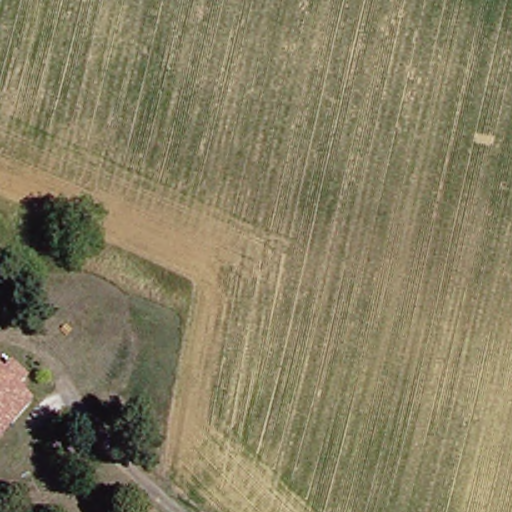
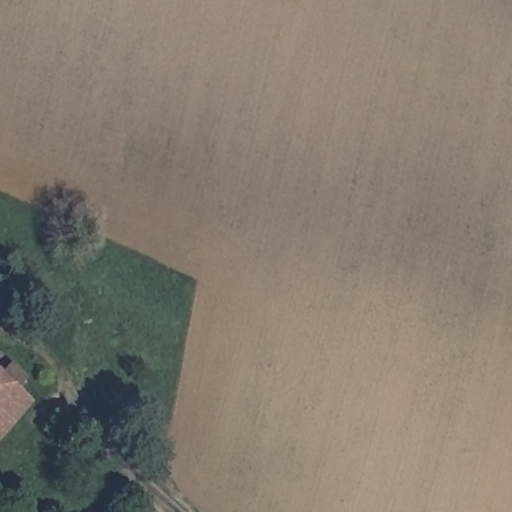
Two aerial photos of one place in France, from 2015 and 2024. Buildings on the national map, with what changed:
unchanged [(0,437),(0,367),(34,398),(0,437)]

